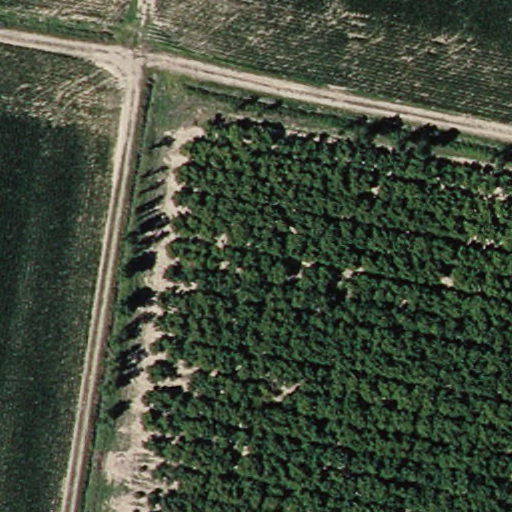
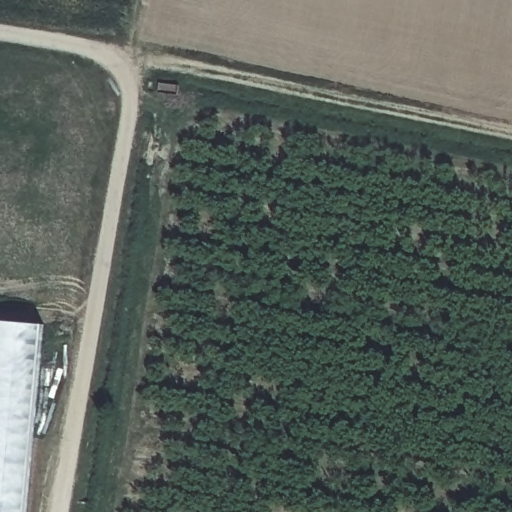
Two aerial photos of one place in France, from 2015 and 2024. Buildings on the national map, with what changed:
new [(31,512),(0,512),(0,321),(50,326),(31,512)]

